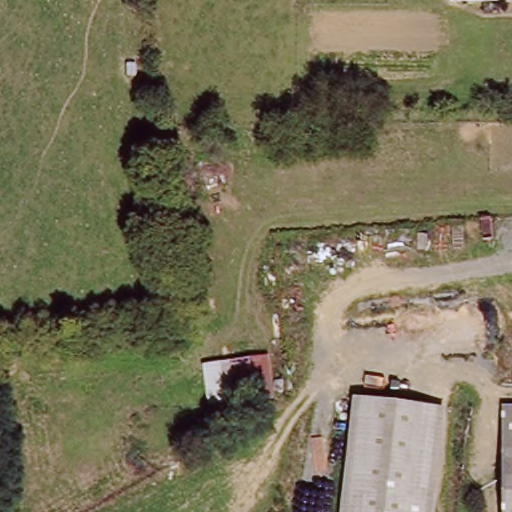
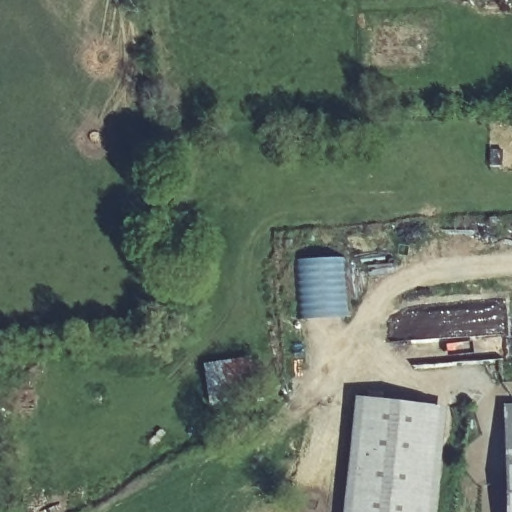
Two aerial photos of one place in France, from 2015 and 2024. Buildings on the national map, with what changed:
new [(344,320),(294,321),(293,259),(343,257),(344,320)]
unchanged [(251,353),(258,407),(209,412),(204,360),(251,353)]
unchanged [(350,512),(363,393),(432,400),(419,512),(350,512)]
unchanged [(419,512),(432,400),(452,403),(440,512),(419,512)]

